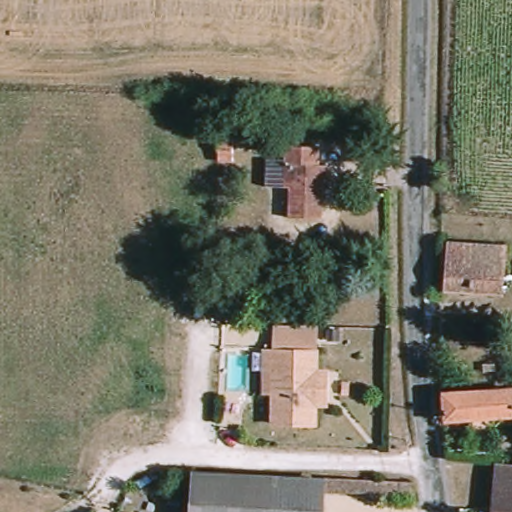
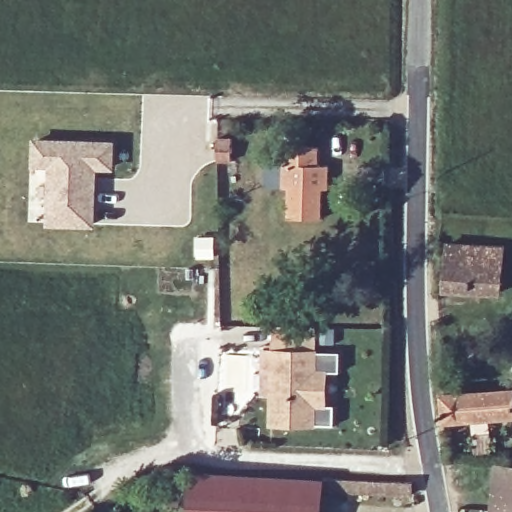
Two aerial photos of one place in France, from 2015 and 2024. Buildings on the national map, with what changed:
unchanged [(221,160),(222,132),(239,134),(238,162),(221,160)]
new [(116,170),(99,169),(96,227),(48,226),(51,169),(32,167),(33,137),(116,141),(116,170)]
unchanged [(322,159),(321,182),(316,182),(315,216),(278,214),(278,167),(281,145),(311,145),(311,159),(322,159)]
unchanged [(495,291),(443,289),(445,242),(496,246),(495,291)]
unchanged [(273,424),(274,371),(263,371),(264,347),(316,347),(316,367),(328,367),(328,380),(316,387),(315,425),(273,424)]
unchanged [(483,427),(465,426),(467,411),(439,409),(438,388),(512,388),(512,397),(511,412),(484,412),(483,427)]
unchanged [(489,483),(491,457),(512,458),(512,485),(489,483)]
unchanged [(313,477),(314,473),(394,477),(404,477),(404,488),(400,489),(313,486),(313,477)]
unchanged [(276,476),(275,512),(183,512),(184,475),(276,476)]
unchanged [(313,477),(313,486),(312,512),(275,512),(276,476),(313,477)]
unchanged [(486,505),(489,483),(512,485),(512,508),(486,505)]
unchanged [(512,508),(512,512),(485,512),(486,505),(512,508)]

